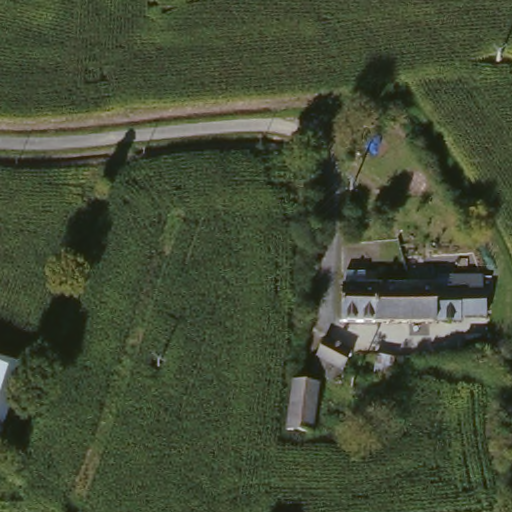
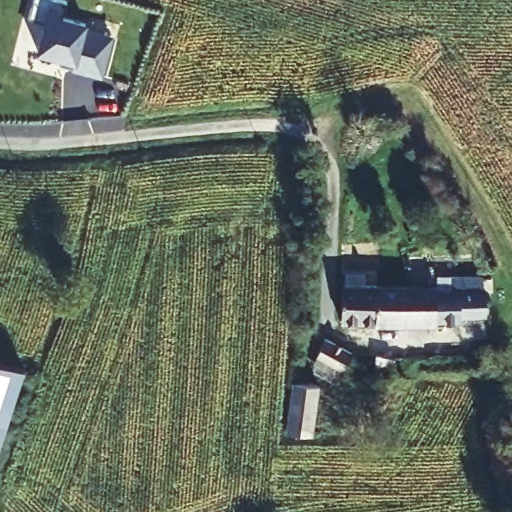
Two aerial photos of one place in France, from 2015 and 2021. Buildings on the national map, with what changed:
new [(67,0),(64,15),(90,21),(88,29),(119,35),(109,79),(77,71),(79,63),(38,54),(46,21),(27,17),(30,0),(67,0)]
unchanged [(423,269),(447,268),(447,276),(493,278),(493,293),(496,292),(496,319),(468,319),(466,325),(383,321),(391,287),(422,290),(423,269)]
unchanged [(391,287),(383,321),(350,325),(353,286),(391,287)]
unchanged [(346,371),(318,357),(331,339),(357,354),(346,371)]
unchanged [(387,374),(384,373),(372,372),(377,353),(393,355),(387,374)]
unchanged [(20,369),(0,434),(0,364),(20,369)]
unchanged [(317,387),(310,434),(283,430),(293,380),(317,387)]

